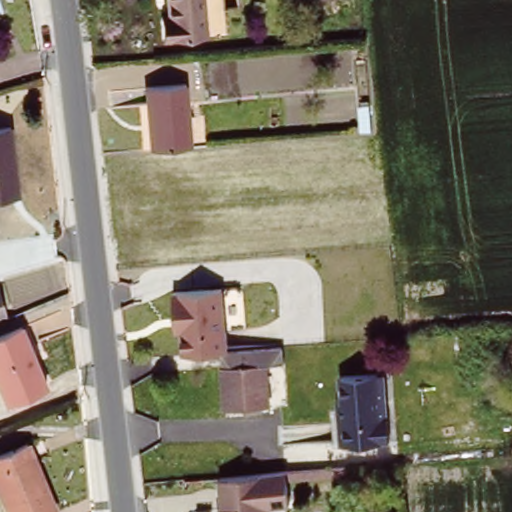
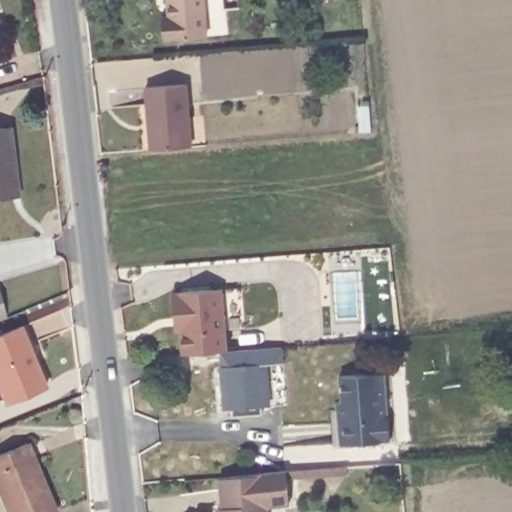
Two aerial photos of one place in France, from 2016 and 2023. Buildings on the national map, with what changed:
unchanged [(164,24),(171,23),(168,0),(203,0),(207,43),(173,47),(166,47),(164,24)]
unchanged [(151,154),(147,92),(186,91),(190,151),(151,154)]
unchanged [(0,203),(0,134),(12,132),(16,170),(20,201),(13,202),(0,203)]
unchanged [(175,325),(170,325),(168,300),(216,296),(221,356),(218,357),(177,360),(175,325)]
unchanged [(13,402),(0,375),(0,352),(28,338),(51,382),(13,402)]
unchanged [(277,370),(265,370),(267,412),(222,415),(218,357),(221,356),(277,352),(277,370)]
unchanged [(384,372),(387,440),(339,443),(337,372),(384,372)]
unchanged [(4,512),(0,505),(0,458),(19,448),(52,512),(4,512)]
unchanged [(260,512),(218,512),(215,481),(281,476),(285,508),(260,512)]

